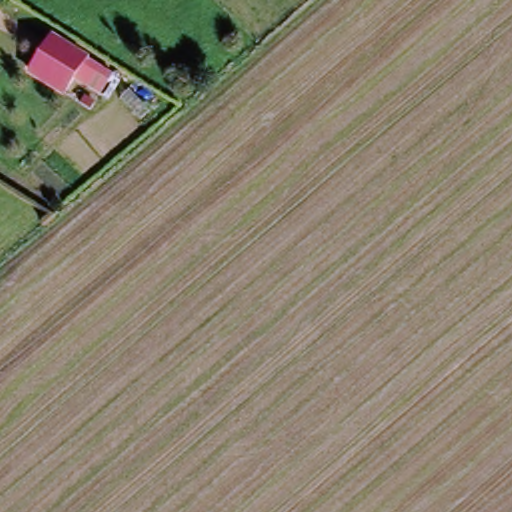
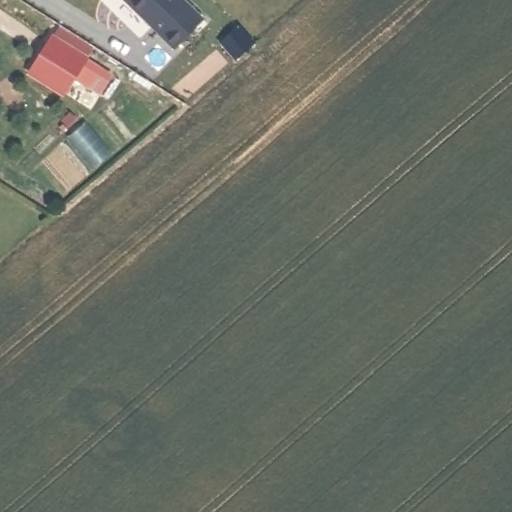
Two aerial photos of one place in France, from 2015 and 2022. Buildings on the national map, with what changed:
new [(202,12),(174,41),(132,0),(189,0),(202,12)]
unchanged [(113,73),(100,94),(74,77),(65,95),(28,72),(53,34),(113,73)]

